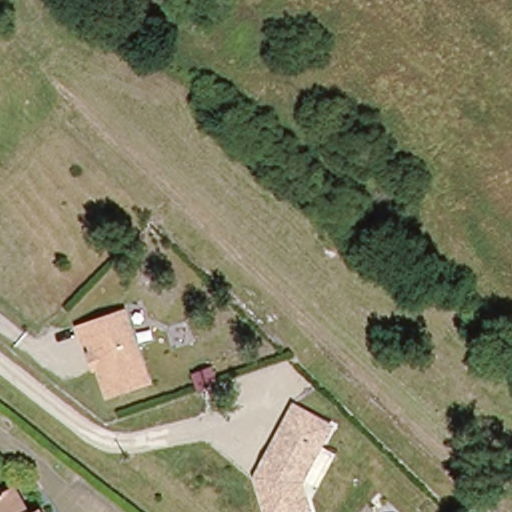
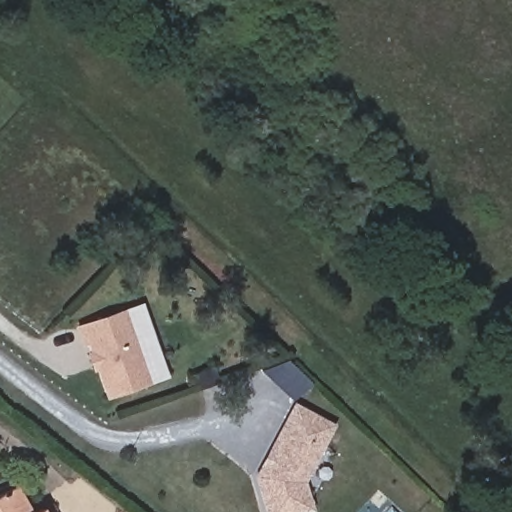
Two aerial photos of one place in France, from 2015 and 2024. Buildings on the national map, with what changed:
unchanged [(114,395),(94,341),(89,343),(82,327),(130,310),(154,380),(114,395)]
unchanged [(335,421),(325,440),(305,476),(313,503),(283,512),(273,512),(260,471),(266,460),(272,459),(276,451),(275,446),(298,402),(328,418),(335,421)]
unchanged [(0,497),(16,488),(29,512),(0,512),(0,497)]
unchanged [(41,510),(43,512),(35,512),(41,510)]

